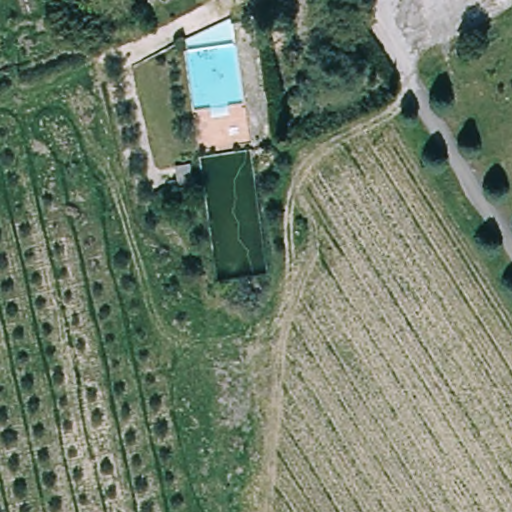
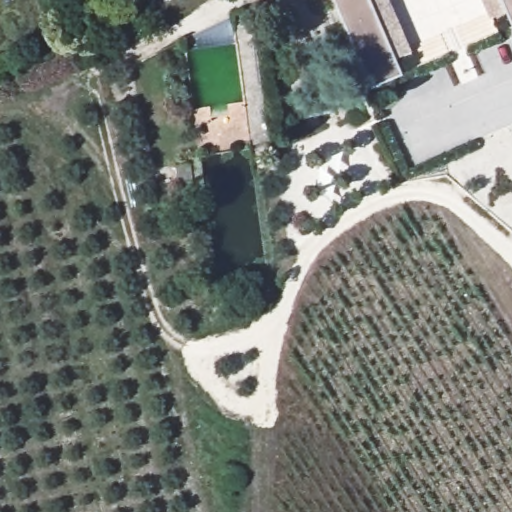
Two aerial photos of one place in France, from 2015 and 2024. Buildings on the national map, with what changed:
new [(410,53),(395,59),(401,75),(371,86),(334,0),(389,0),(410,53)]
new [(512,23),(506,11),(488,19),(480,0),(512,0),(512,23)]

